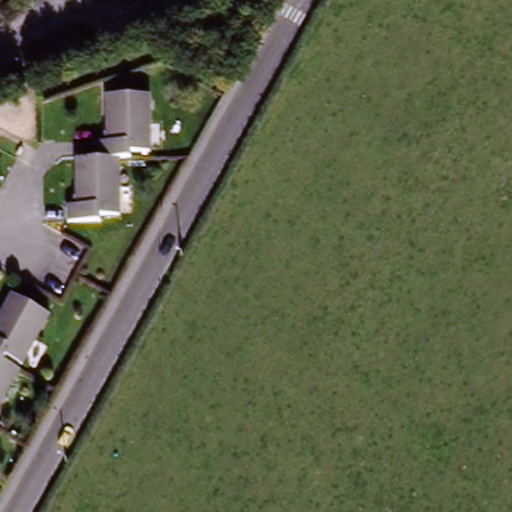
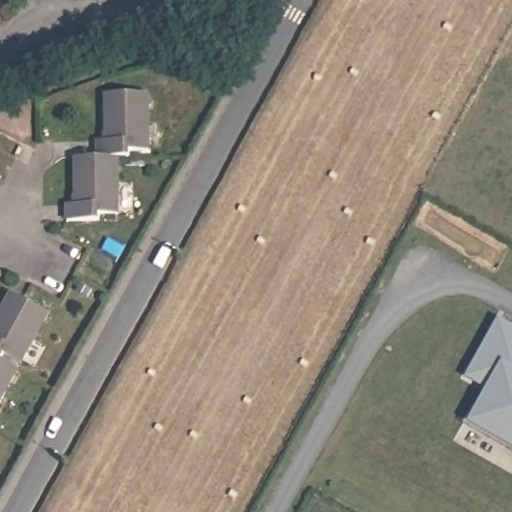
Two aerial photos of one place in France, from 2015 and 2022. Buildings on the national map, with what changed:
unchanged [(95,145),(108,145),(107,100),(146,99),(147,152),(133,153),(133,160),(116,161),(97,161),(95,145)]
unchanged [(74,164),(97,161),(116,161),(117,217),(102,217),(102,224),(68,225),(67,208),(75,208),(74,164)]
unchanged [(11,301),(47,320),(22,368),(8,360),(3,368),(0,366),(0,321),(11,301)]
new [(485,390),(466,379),(499,320),(512,327),(512,452),(465,426),(485,390)]
unchanged [(3,368),(17,376),(0,408),(0,366),(3,368)]

